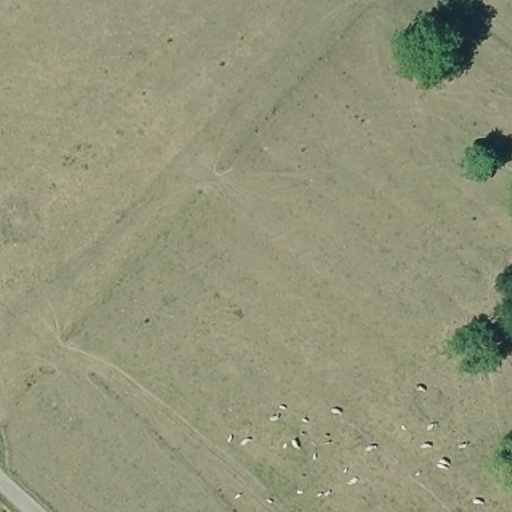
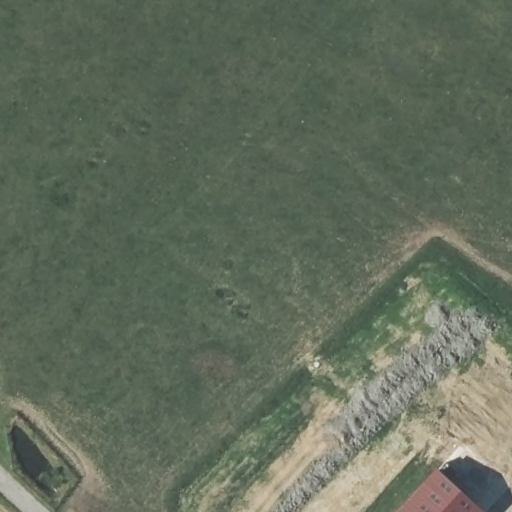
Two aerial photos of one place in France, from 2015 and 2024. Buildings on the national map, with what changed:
new [(475,512),(396,512),(436,471),(475,512)]

